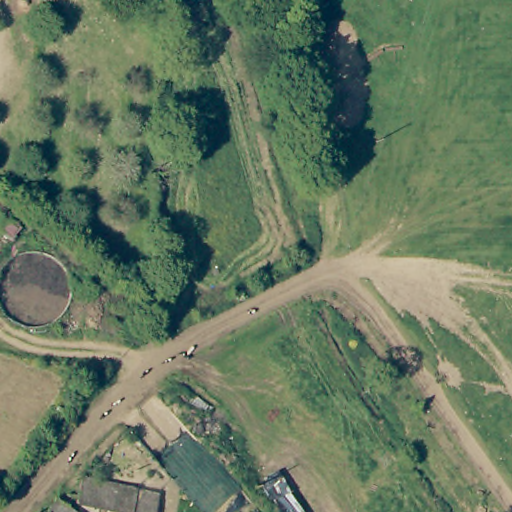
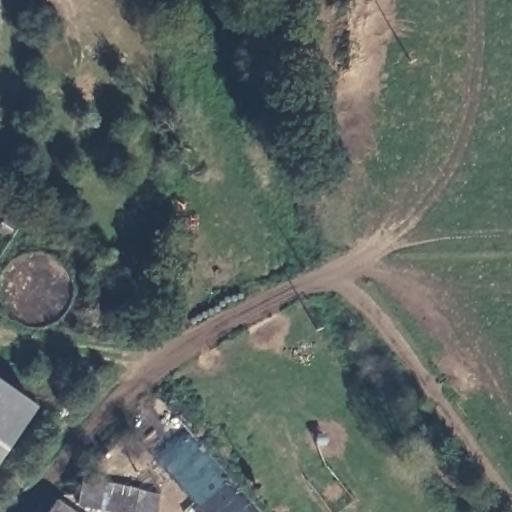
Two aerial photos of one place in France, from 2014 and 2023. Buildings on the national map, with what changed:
new [(0,456),(0,382),(35,407),(0,456)]
unchanged [(146,512),(84,512),(85,492),(147,496),(146,512)]
unchanged [(51,503),(63,512),(45,512),(51,503)]

